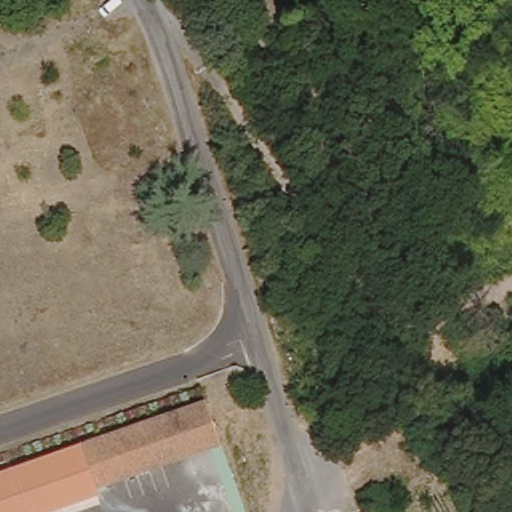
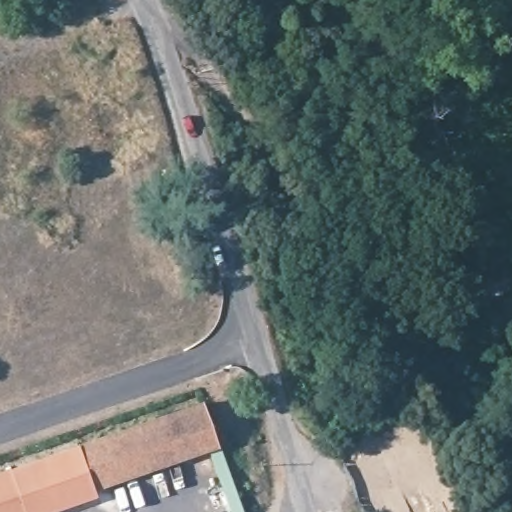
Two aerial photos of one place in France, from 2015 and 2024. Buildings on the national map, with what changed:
unchanged [(203,397),(217,437),(94,478),(71,485),(58,446),(203,397)]
unchanged [(71,485),(94,478),(217,437),(221,447),(96,489),(98,496),(53,512),(0,512),(0,466),(58,446),(71,485)]

